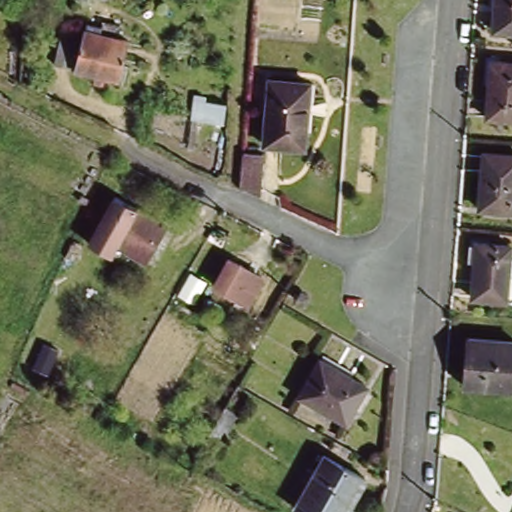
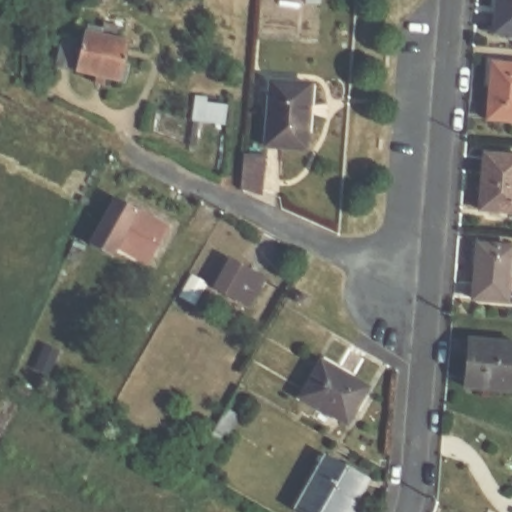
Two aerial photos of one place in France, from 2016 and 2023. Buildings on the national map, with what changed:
unchanged [(495,0),(512,0),(512,32),(492,30),(495,0)]
unchanged [(97,27),(111,31),(112,26),(130,31),(127,43),(138,45),(128,86),(85,75),(97,27)]
unchanged [(82,73),(65,70),(70,43),(88,47),(82,73)]
unchanged [(495,55),(512,57),(512,115),(490,113),(495,55)]
unchanged [(307,143),(267,140),(273,75),(312,79),(307,143)]
unchanged [(196,93),(205,94),(204,100),(225,103),(222,124),(191,118),(196,93)]
unchanged [(484,154),(512,156),(512,211),(480,208),(484,154)]
unchanged [(242,158),(263,158),(261,193),(240,192),(242,158)]
unchanged [(110,253),(87,241),(116,193),(137,206),(115,241),(110,253)]
unchanged [(137,206),(169,225),(147,260),(115,241),(137,206)]
unchanged [(512,267),(510,266),(508,294),(473,291),(477,238),(512,240),(511,252),(512,252),(512,267)]
unchanged [(240,260),(273,278),(260,303),(226,285),(240,260)]
unchanged [(198,295),(208,277),(221,284),(211,302),(198,295)]
unchanged [(310,297),(305,305),(297,300),(302,292),(310,297)]
unchanged [(512,341),(512,389),(469,385),(474,337),(512,341)]
unchanged [(319,357),(364,383),(344,418),(299,392),(319,357)]
unchanged [(236,415),(226,434),(223,432),(218,440),(208,435),(223,407),(236,415)]
unchanged [(351,503),(357,507),(355,512),(312,512),(297,503),(326,452),(367,476),(351,503)]

